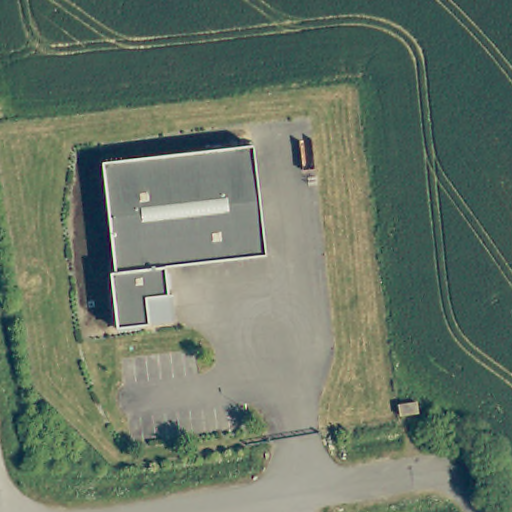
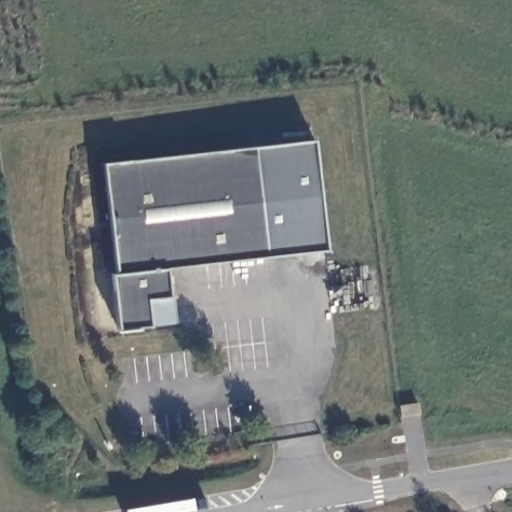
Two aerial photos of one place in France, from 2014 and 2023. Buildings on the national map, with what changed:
new [(257,141),(312,135),(325,248),(271,253),(257,141)]
unchanged [(257,141),(271,253),(241,257),(228,145),(257,141)]
unchanged [(241,257),(171,264),(174,292),(170,293),(173,319),(120,325),(113,272),(119,270),(105,160),(228,145),(241,257)]

